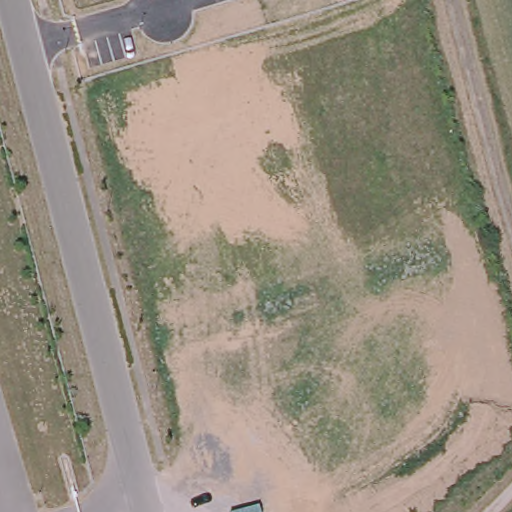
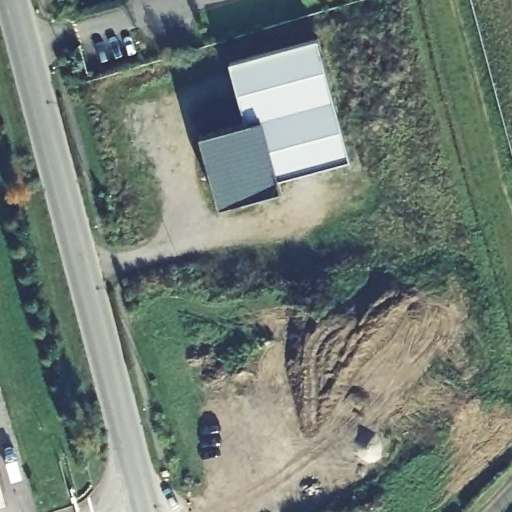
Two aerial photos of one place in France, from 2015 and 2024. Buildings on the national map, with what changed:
new [(318,38),(351,159),(278,178),(281,192),(219,208),(199,137),(246,123),(230,61),(318,38)]

